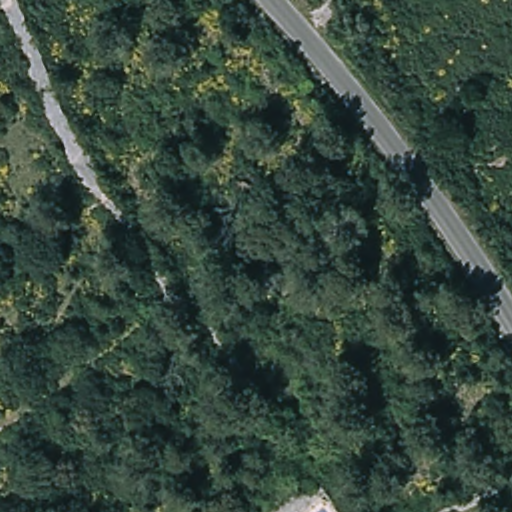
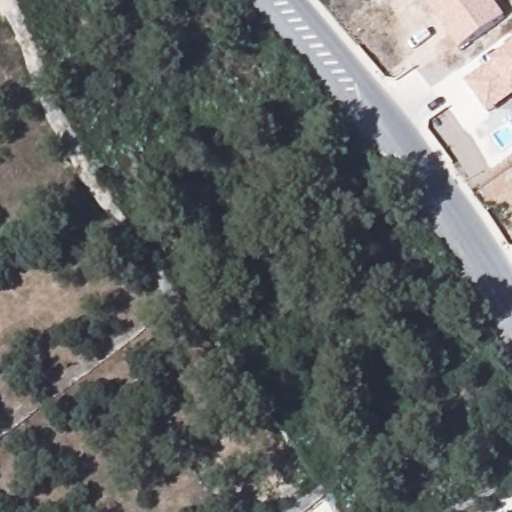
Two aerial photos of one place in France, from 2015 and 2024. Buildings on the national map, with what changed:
new [(507,18),(462,52),(424,0),(494,0),(507,18)]
new [(467,82),(495,65),(493,63),(512,49),(512,99),(490,113),(467,82)]

